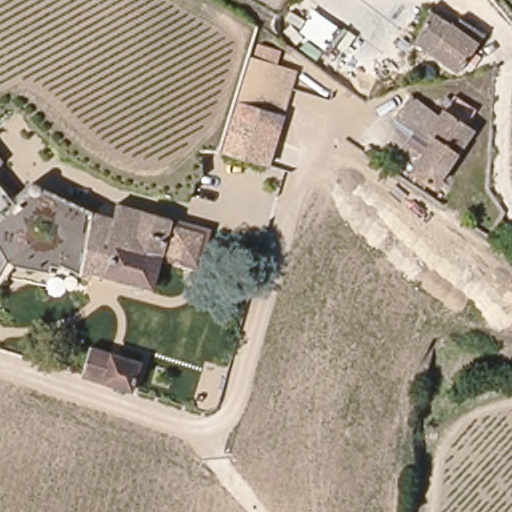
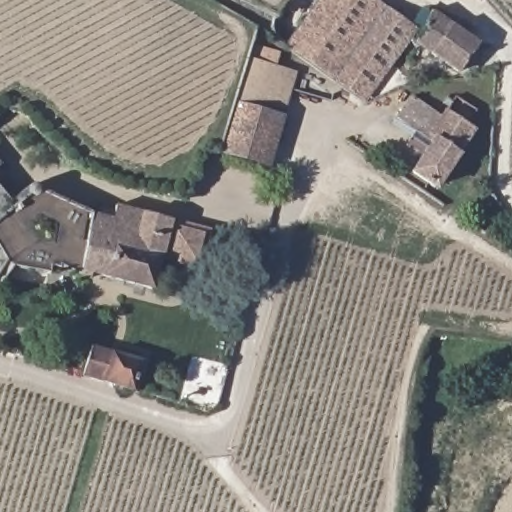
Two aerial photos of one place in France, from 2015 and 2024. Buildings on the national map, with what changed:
new [(432,11),(477,43),(472,51),(481,57),(470,72),(461,66),(457,72),(411,39),(365,102),(289,46),(323,0),(381,0),(419,28),(432,11)]
demolished [(455,74),(450,70),(415,47),(411,44),(428,20),(424,17),(435,0),(455,0),(489,24),(458,70),(455,74)]
unchanged [(295,67),(269,162),(222,150),(224,145),(226,135),(242,80),(244,71),(249,55),(295,67)]
demolished [(365,81),(354,72),(362,63),(366,66),(373,72),(365,81)]
unchanged [(408,104),(410,106),(434,124),(439,117),(434,112),(442,102),(466,120),(459,130),(468,137),(444,169),(446,171),(429,195),(405,177),(426,149),(393,124),(406,107),(408,104)]
unchanged [(0,165),(0,154),(5,160),(0,165)]
unchanged [(159,257),(152,284),(89,269),(90,274),(77,273),(77,267),(54,262),(50,271),(15,263),(10,256),(3,244),(0,239),(0,215),(19,198),(16,195),(33,180),(114,217),(118,204),(208,229),(198,266),(159,257)]
unchanged [(93,350),(143,365),(134,394),(122,390),(90,380),(84,378),(93,350)]

